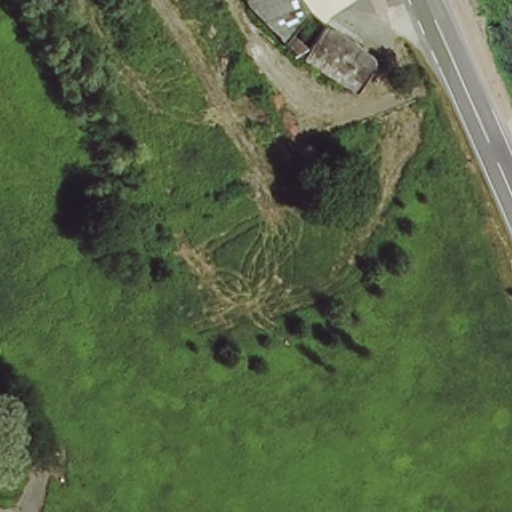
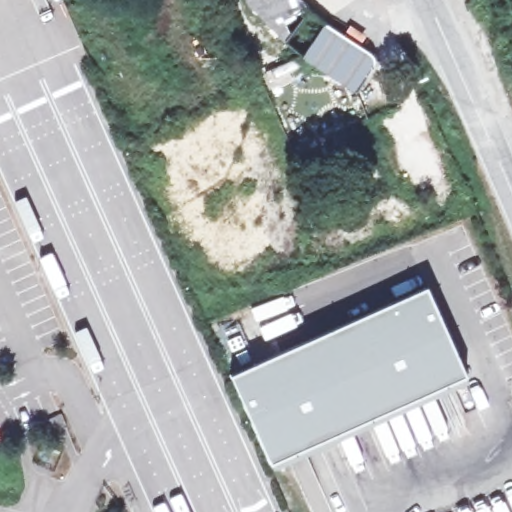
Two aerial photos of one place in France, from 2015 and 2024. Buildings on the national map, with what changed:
unchanged [(327,20),(380,59),(357,93),(294,51),(262,16),(255,0),(307,0),(327,20)]
new [(431,288),(471,377),(275,465),(235,375),(431,288)]

